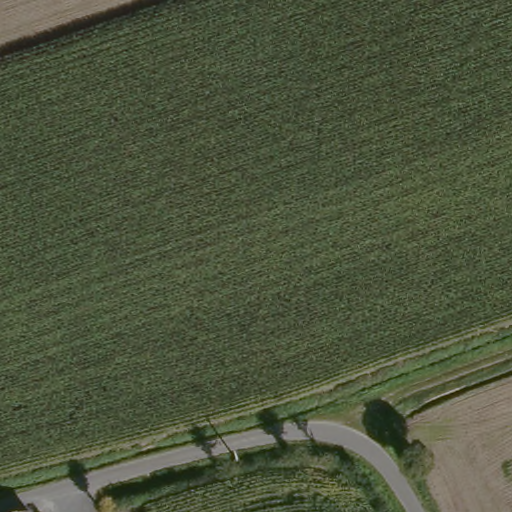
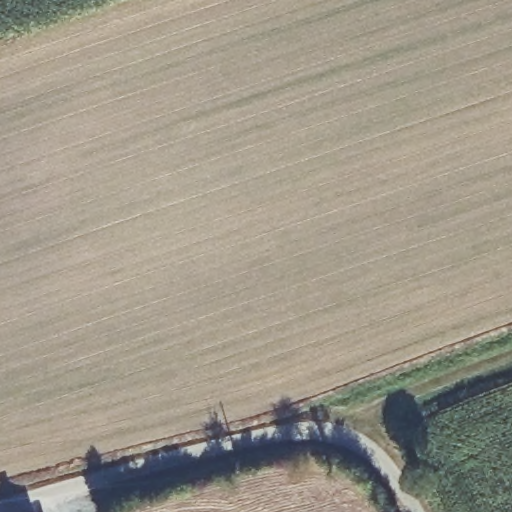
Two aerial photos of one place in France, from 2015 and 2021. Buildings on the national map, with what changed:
unchanged [(41,510),(42,512),(37,512),(41,510)]

